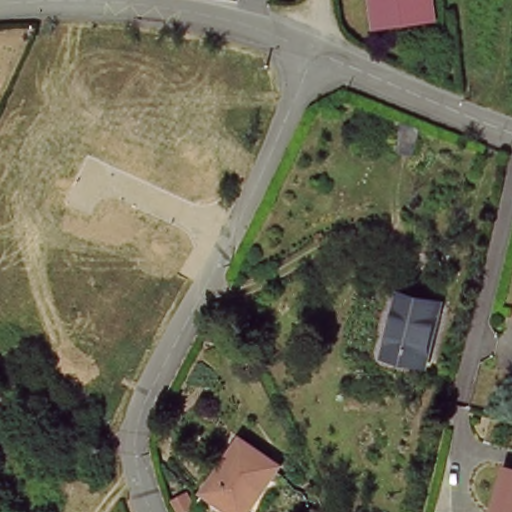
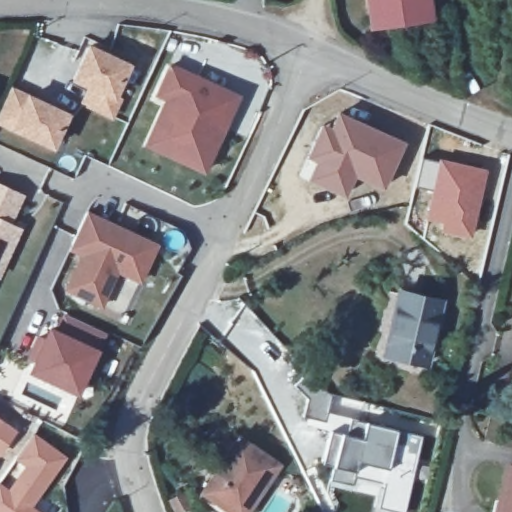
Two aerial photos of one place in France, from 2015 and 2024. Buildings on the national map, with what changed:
unchanged [(380,36),(373,0),(432,0),(437,30),(380,36)]
new [(123,105),(114,121),(80,104),(88,90),(71,82),(88,45),(131,65),(113,100),(123,105)]
new [(185,158),(153,144),(173,97),(163,93),(176,65),(203,76),(243,95),(231,123),(213,160),(210,170),(185,158)]
new [(0,125),(0,118),(13,88),(27,96),(68,115),(53,150),(11,131),(0,125)]
new [(356,178),(346,199),(306,181),(315,162),(306,157),(321,125),(331,129),(339,111),(406,143),(384,192),(356,178)]
new [(420,158),(437,161),(438,159),(487,170),(472,240),(439,233),(441,225),(424,221),(430,189),(414,185),(420,158)]
new [(0,280),(0,183),(25,195),(10,225),(22,229),(0,280)]
new [(84,249),(70,242),(85,211),(155,244),(140,280),(117,269),(101,304),(66,288),(84,249)]
unchanged [(445,301),(431,363),(411,358),(412,352),(393,347),(405,292),(445,301)]
new [(75,388),(38,371),(43,360),(37,357),(45,338),(51,340),(56,330),(63,332),(73,313),(111,331),(102,351),(83,391),(75,388)]
new [(372,511),(376,487),(356,481),(355,490),(329,483),(333,466),(322,463),(330,430),(345,434),(350,417),(422,435),(404,512),(377,512),(372,511)]
new [(0,451),(0,418),(15,429),(0,451)]
new [(7,485),(20,467),(13,462),(31,432),(67,456),(33,505),(41,512),(0,512),(0,481),(0,480),(7,485)]
unchanged [(223,506),(201,491),(238,438),(278,465),(246,511),(246,512),(231,512),(223,506)]
unchanged [(509,466),(512,467),(512,512),(498,512),(509,466)]

